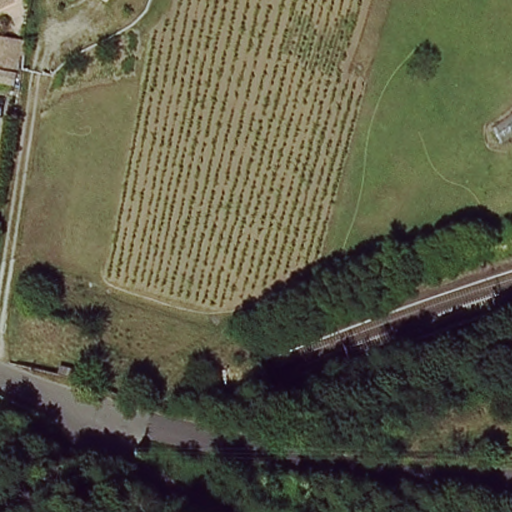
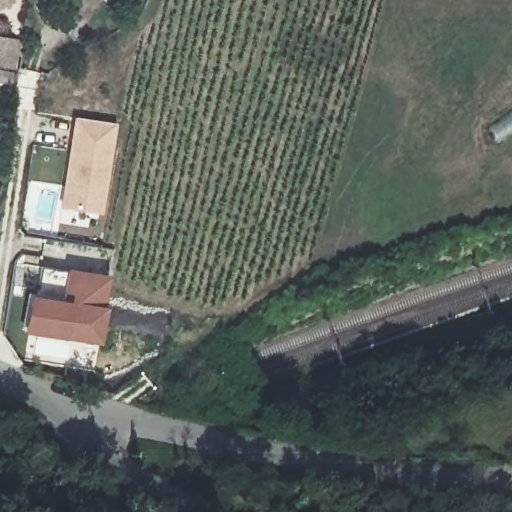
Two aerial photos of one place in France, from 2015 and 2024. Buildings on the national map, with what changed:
unchanged [(0,16),(0,0),(11,0),(13,8),(0,16)]
new [(24,40),(14,85),(0,83),(0,36),(24,40)]
new [(117,124),(103,214),(62,208),(75,118),(117,124)]
new [(28,293),(60,298),(65,269),(111,275),(103,346),(22,333),(28,293)]

